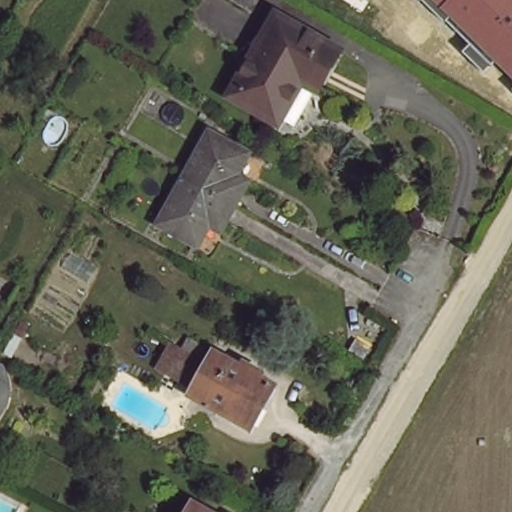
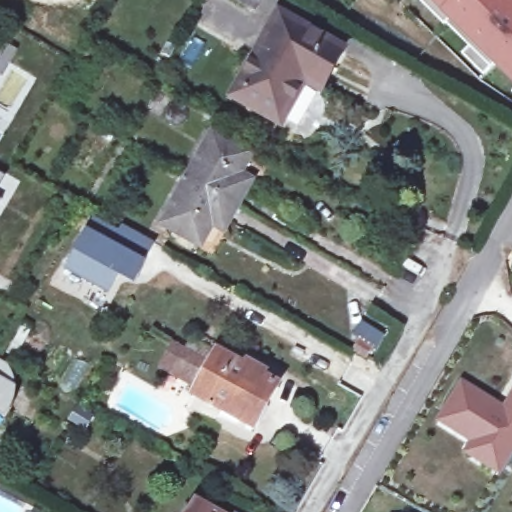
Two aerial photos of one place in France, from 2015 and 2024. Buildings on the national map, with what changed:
unchanged [(235,0),(263,0),(256,12),(235,0)]
unchanged [(512,76),(494,61),(483,72),(462,51),(470,45),(430,0),(512,0),(512,76)]
unchanged [(302,90),(276,133),(228,105),(253,61),(258,64),(279,26),(276,24),(278,21),(341,58),(318,100),(302,90)]
unchanged [(185,177),(210,133),(246,155),(234,175),(244,181),(232,205),(185,177)]
new [(4,176),(0,184),(0,173),(4,176)]
unchanged [(209,222),(196,244),(159,222),(185,177),(232,205),(223,221),(219,227),(209,222)]
new [(4,199),(0,206),(0,197),(4,199)]
new [(119,271),(109,289),(68,266),(95,216),(120,230),(124,223),(155,240),(138,270),(133,280),(119,271)]
unchanged [(262,377),(261,381),(272,389),(248,431),(190,398),(215,356),(241,371),(244,367),(262,377)]
unchanged [(8,368),(11,383),(12,396),(9,406),(3,415),(0,419),(0,358),(8,368)]
new [(503,405),(512,391),(512,454),(498,476),(462,453),(469,441),(435,421),(459,381),(503,405)]
unchanged [(210,512),(186,512),(192,502),(210,512)]

